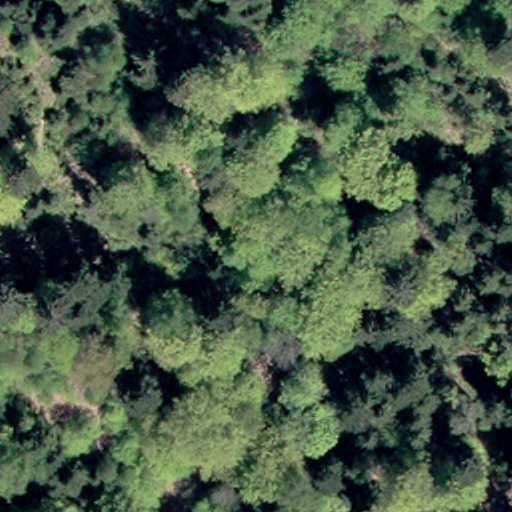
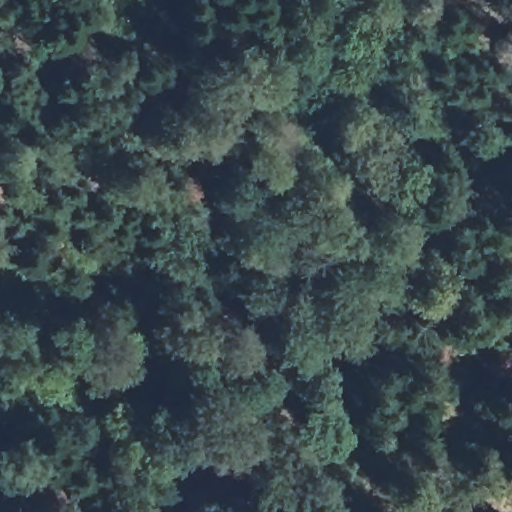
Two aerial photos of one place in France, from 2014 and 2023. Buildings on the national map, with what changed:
[]

